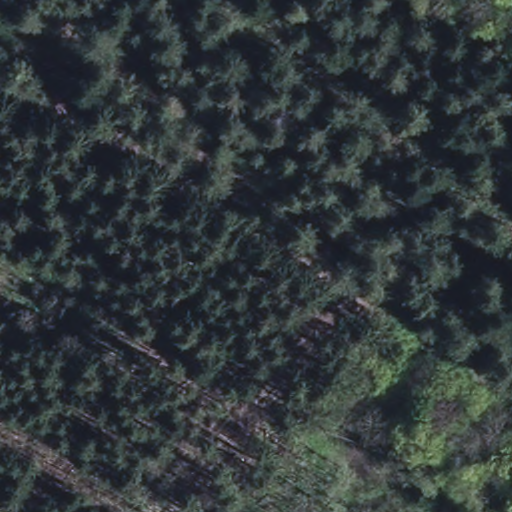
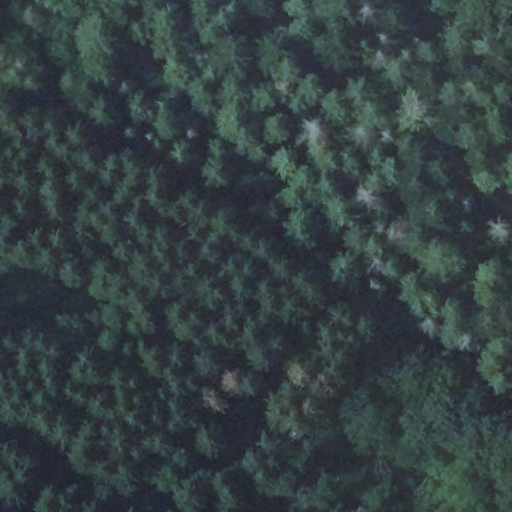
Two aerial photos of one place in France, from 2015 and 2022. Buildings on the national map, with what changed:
[]

